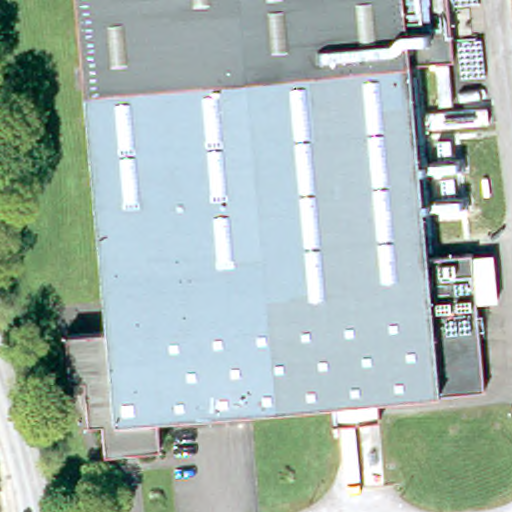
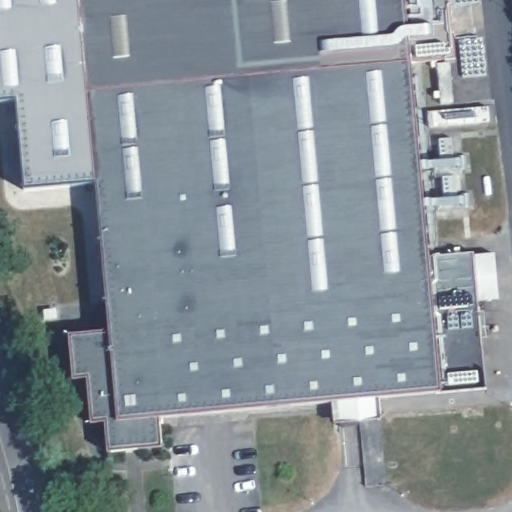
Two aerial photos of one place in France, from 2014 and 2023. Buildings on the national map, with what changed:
new [(95,182),(24,188),(16,98),(0,99),(0,0),(78,0),(87,91),(95,182)]
unchanged [(410,61),(87,91),(78,0),(447,0),(453,56),(410,61)]
unchanged [(107,450),(104,420),(89,422),(85,376),(72,377),(68,332),(110,328),(87,91),(410,61),(427,255),(470,251),(484,385),(374,395),(375,409),(335,413),(334,399),(157,415),(160,445),(136,447),(122,449),(107,450)]
unchanged [(450,61),(453,101),(440,103),(437,63),(450,61)]

